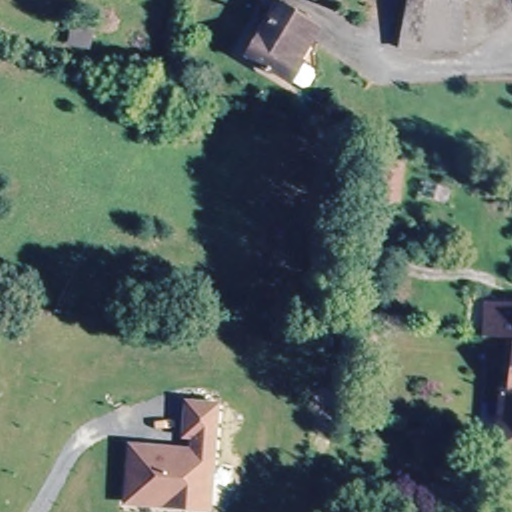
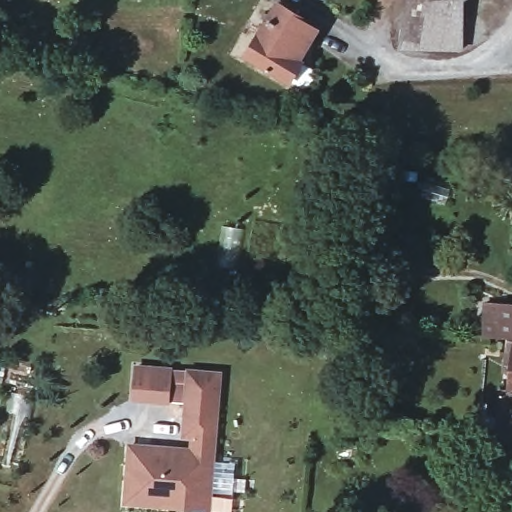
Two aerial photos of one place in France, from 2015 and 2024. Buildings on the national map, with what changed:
unchanged [(410,0),(457,0),(455,50),(403,49),(410,0)]
unchanged [(275,2),(320,33),(298,63),(310,73),(295,93),(240,56),(275,2)]
unchanged [(95,33),(92,65),(68,62),(72,32),(95,33)]
unchanged [(391,196),(365,191),(355,190),(361,156),(370,158),(396,162),(391,196)]
unchanged [(445,187),(440,201),(415,193),(420,179),(445,187)]
unchanged [(509,340),(505,338),(493,339),(480,337),(481,321),(481,306),(497,305),(506,306),(512,306),(512,341),(509,340)]
unchanged [(496,388),(504,389),(509,340),(512,341),(512,439),(490,437),(490,430),(496,388)]
new [(135,364),(174,367),(174,369),(186,370),(186,368),(222,371),(220,402),(184,399),(184,403),(170,402),(170,405),(132,402),(135,364)]
unchanged [(180,438),(184,399),(220,402),(212,511),(124,505),(127,442),(190,447),(190,439),(180,438)]

